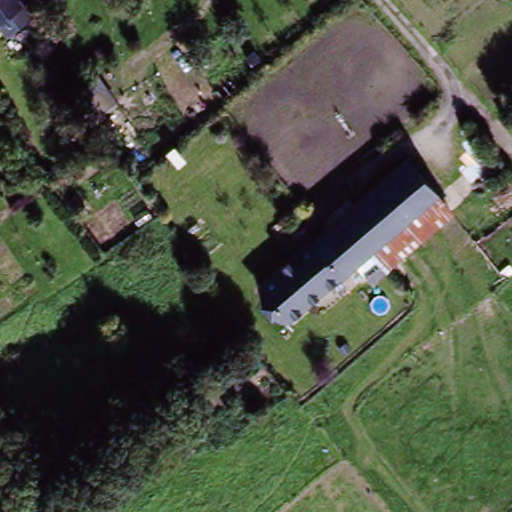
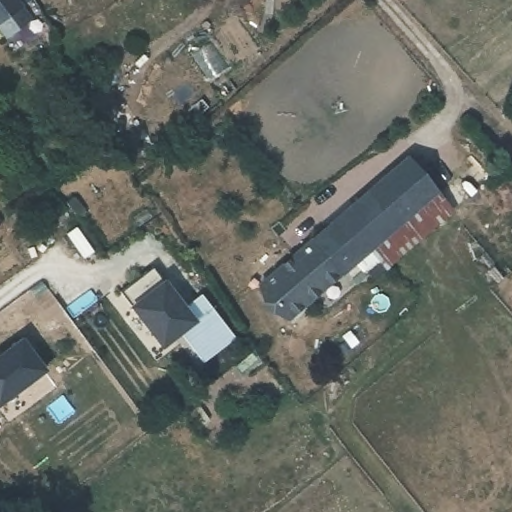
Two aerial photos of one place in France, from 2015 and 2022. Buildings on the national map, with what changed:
unchanged [(0,20),(0,0),(10,0),(16,8),(0,20)]
unchanged [(288,324),(258,287),(405,155),(436,193),(355,265),(288,324)]
unchanged [(453,213),(371,284),(355,265),(436,193),(453,213)]
new [(170,355),(124,296),(149,276),(155,272),(168,288),(201,330),(170,355)]
new [(48,374),(5,410),(0,405),(0,362),(23,343),(48,374)]

